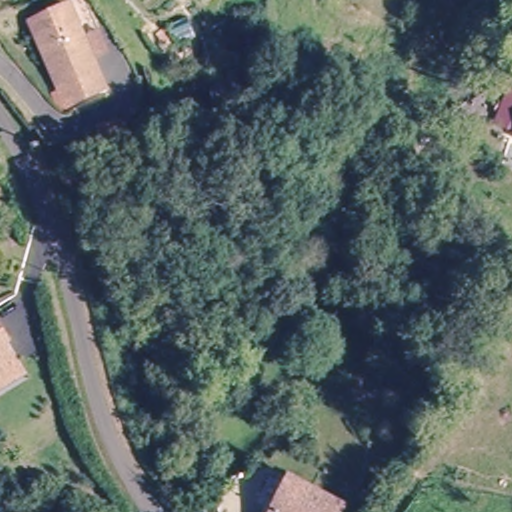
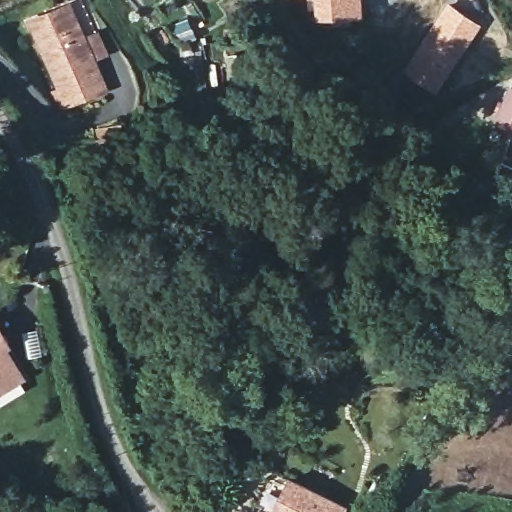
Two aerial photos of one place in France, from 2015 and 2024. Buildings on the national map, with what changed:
new [(316,19),(314,0),(364,0),(365,14),(316,19)]
new [(449,0),(483,22),(438,92),(403,71),(449,0)]
unchanged [(71,99),(31,19),(70,1),(108,80),(71,99)]
unchanged [(12,347),(28,379),(23,383),(26,388),(0,402),(0,318),(15,344),(12,347)]
unchanged [(285,482),(339,509),(337,512),(270,512),(279,493),(285,482)]

